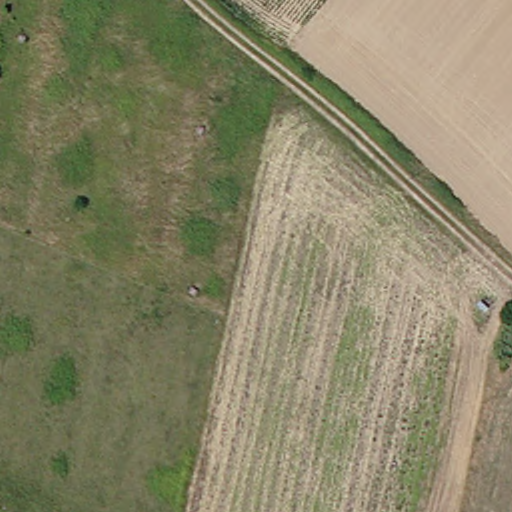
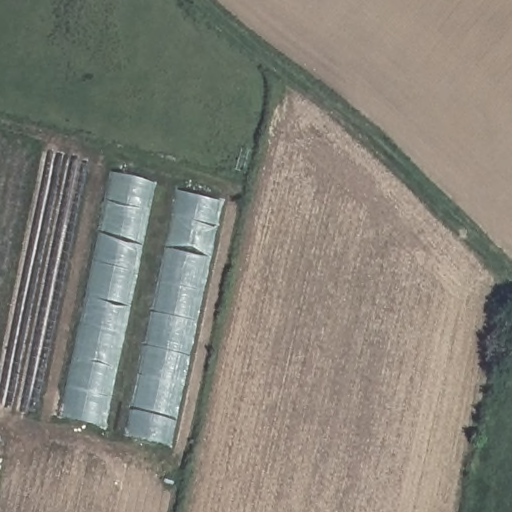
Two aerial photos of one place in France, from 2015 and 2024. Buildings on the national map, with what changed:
new [(107,430),(60,419),(111,173),(158,185),(107,430)]
new [(173,450),(124,438),(175,190),(224,201),(173,450)]

